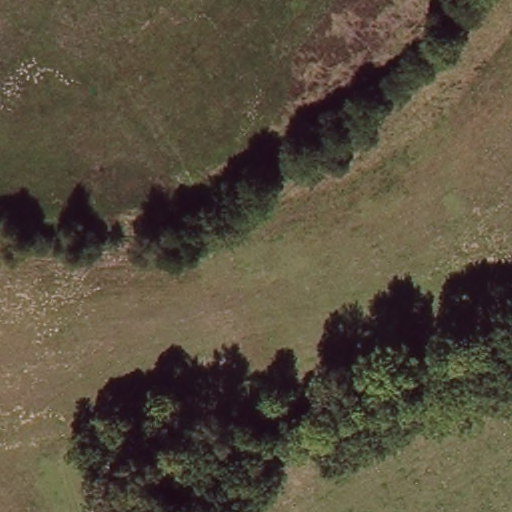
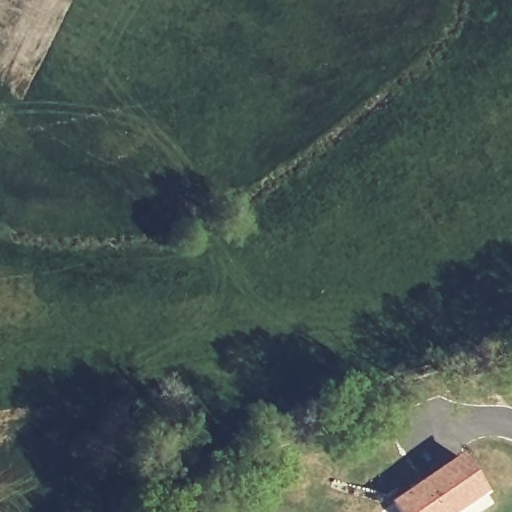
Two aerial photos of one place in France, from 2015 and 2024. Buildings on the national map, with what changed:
new [(486,492),(457,512),(395,512),(389,502),(459,453),(486,492)]

